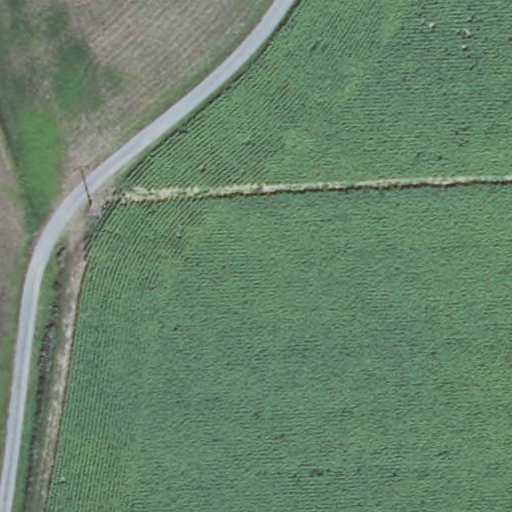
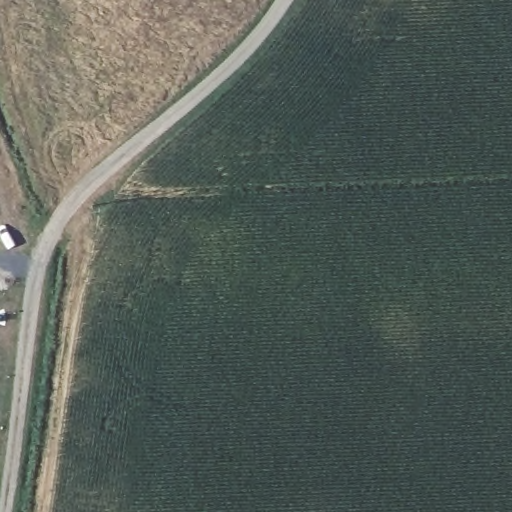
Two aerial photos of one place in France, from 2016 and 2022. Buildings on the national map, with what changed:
[]

